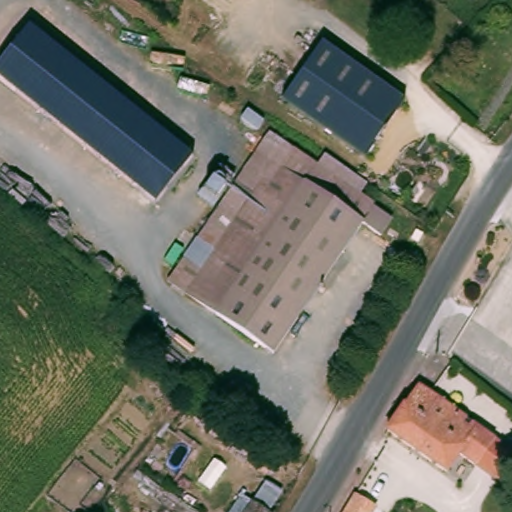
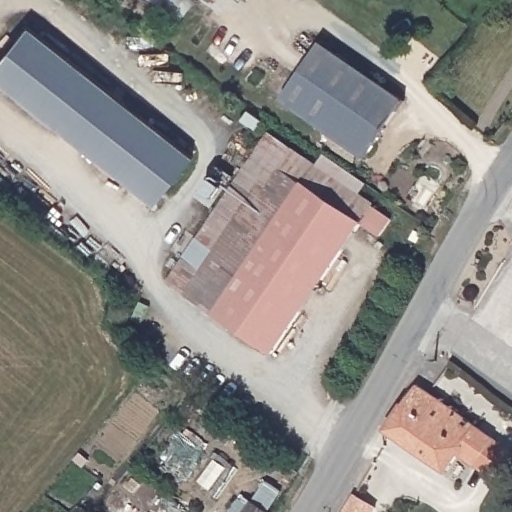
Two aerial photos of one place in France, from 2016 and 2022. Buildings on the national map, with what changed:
unchanged [(148,109),(199,146),(159,201),(108,164),(0,84),(0,60),(28,22),(148,109)]
unchanged [(403,101),(362,162),(280,102),(321,38),(403,101)]
unchanged [(398,229),(389,242),(371,229),(276,355),(168,274),(187,247),(204,260),(215,245),(199,232),(279,129),(385,209),(380,215),(398,229)]
unchanged [(458,408),(425,454),(391,430),(423,382),(458,408)]
unchanged [(479,465),(462,453),(448,471),(425,454),(458,408),(498,438),(512,447),(512,466),(502,480),(479,465)]
unchanged [(262,500),(253,512),(230,512),(246,489),(262,500)]
unchanged [(343,512),(353,493),(380,509),(378,512),(343,512)]

